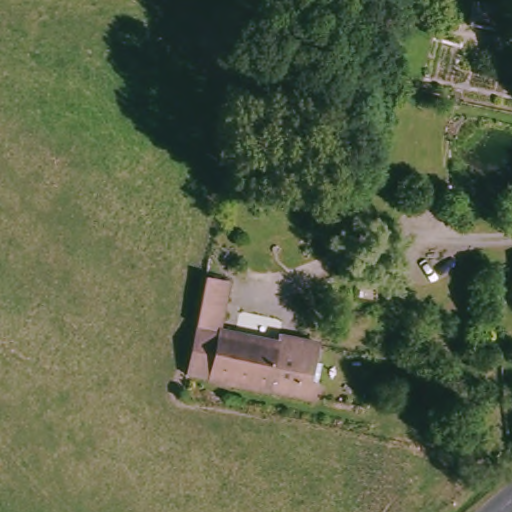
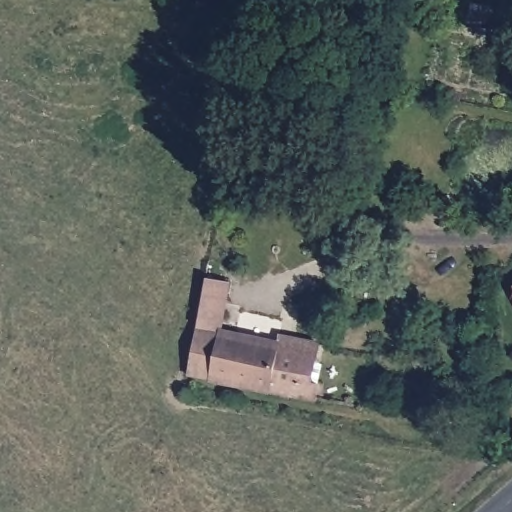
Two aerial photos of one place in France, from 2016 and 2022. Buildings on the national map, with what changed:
unchanged [(497,7),(493,30),(469,26),(473,3),(497,7)]
unchanged [(235,282),(227,331),(227,335),(201,331),(212,278),(235,282)]
unchanged [(284,342),(285,337),(296,339),(325,345),(317,383),(325,385),(322,402),(193,375),(201,331),(227,335),(227,331),(284,342)]

